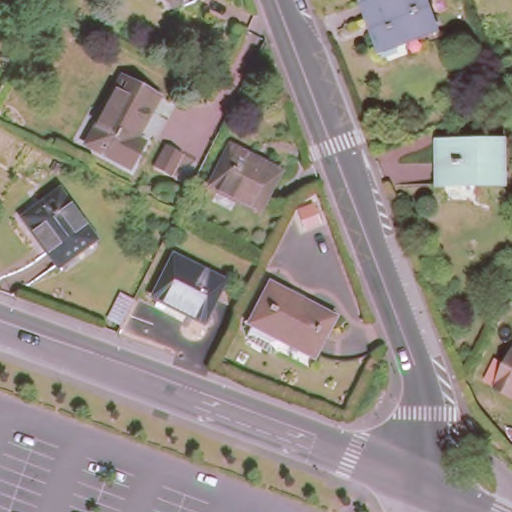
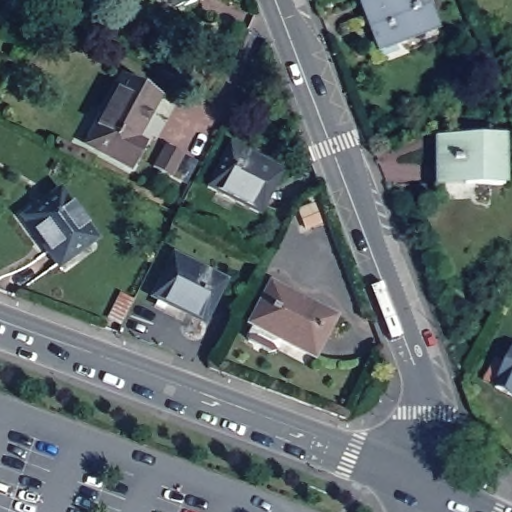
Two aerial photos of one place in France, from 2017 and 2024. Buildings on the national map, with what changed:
unchanged [(168,0),(187,0),(177,4),(175,1),(170,4),(168,0)]
unchanged [(434,19),(376,40),(361,0),(427,0),(434,19)]
unchanged [(130,134),(138,139),(125,164),(80,139),(116,71),(152,91),(130,134)]
unchanged [(508,140),(508,180),(444,180),(444,140),(508,140)]
unchanged [(250,208),(201,184),(222,142),(270,167),(250,208)]
unchanged [(87,235),(51,261),(15,214),(52,187),(87,235)]
unchanged [(170,254),(220,277),(199,320),(150,295),(170,254)]
unchanged [(269,280),(333,313),(312,353),(248,320),(269,280)]
unchanged [(495,383),(512,344),(512,391),(495,383)]

